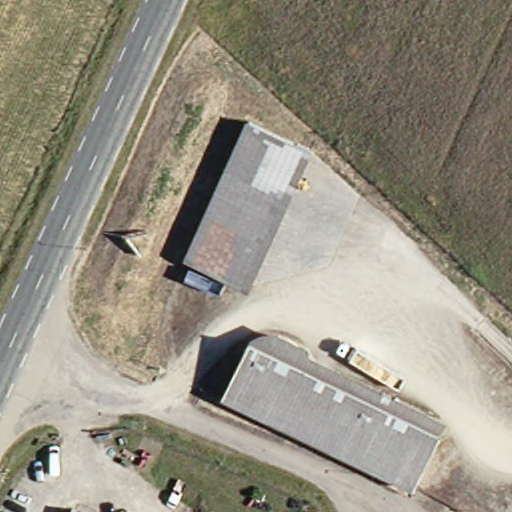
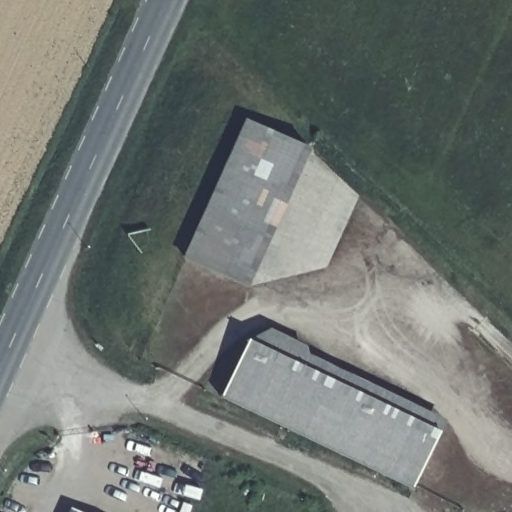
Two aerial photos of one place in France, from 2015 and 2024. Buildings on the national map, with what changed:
unchanged [(190,270),(260,109),(301,125),(319,132),(316,139),(250,296),(190,270)]
unchanged [(229,405),(262,328),(341,363),(310,439),(229,405)]
unchanged [(341,363),(458,415),(425,490),(310,439),(341,363)]
unchanged [(76,512),(76,511),(80,512),(76,512)]

